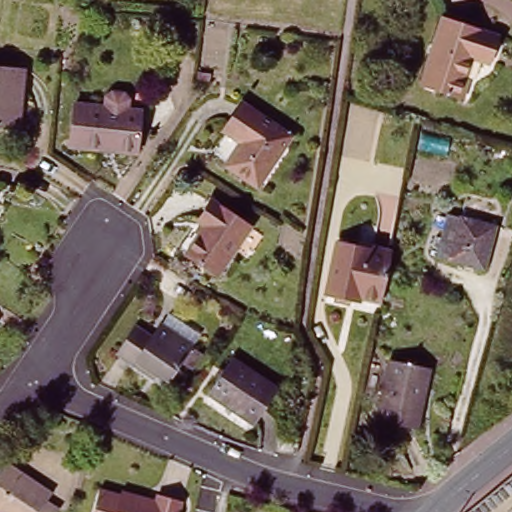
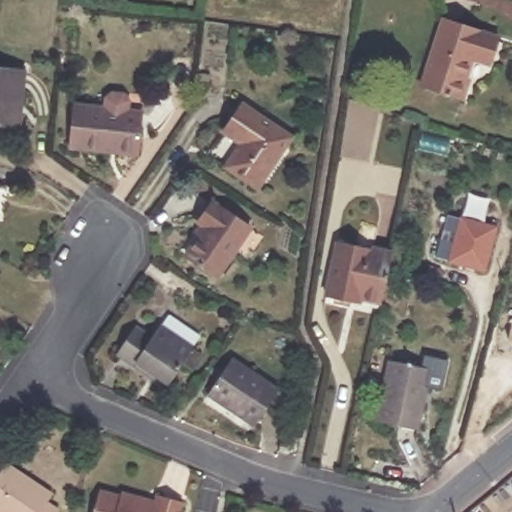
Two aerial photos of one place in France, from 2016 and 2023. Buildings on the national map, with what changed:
unchanged [(468,86),(462,104),(421,90),(442,24),(499,42),(493,60),(490,69),(471,63),(464,85),(468,86)]
unchanged [(18,128),(0,127),(0,68),(23,70),(18,128)]
unchanged [(105,112),(107,102),(112,98),(122,99),(127,104),(126,114),(142,115),(137,158),(73,152),(77,109),(105,112)]
unchanged [(293,143),(258,192),(228,170),(243,149),(226,136),(245,109),(293,143)]
unchanged [(252,228),(217,276),(187,254),(206,227),(198,222),(213,200),(252,228)]
unchanged [(497,230),(485,276),(437,263),(449,217),(497,230)]
unchanged [(345,303),(325,299),(337,243),(392,255),(390,266),(382,305),(362,301),(361,306),(345,303)]
unchanged [(199,337),(167,387),(150,377),(148,380),(113,358),(132,328),(150,338),(157,328),(158,329),(167,317),(199,337)]
unchanged [(205,398),(227,361),(242,369),(250,375),(276,391),(254,427),(240,419),(232,414),(205,398)]
unchanged [(430,370),(418,431),(378,423),(390,362),(430,370)]
unchanged [(280,436),(297,439),(294,456),(276,453),(280,436)]
unchanged [(43,507),(52,512),(0,512),(0,470),(2,468),(48,497),(43,507)]
unchanged [(153,495),(157,489),(182,497),(178,512),(90,512),(97,481),(153,495)]

